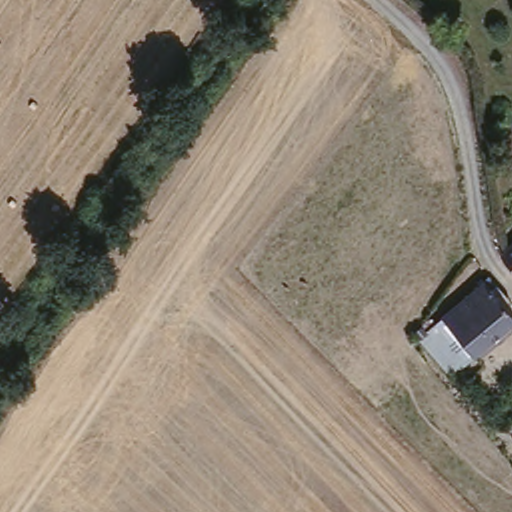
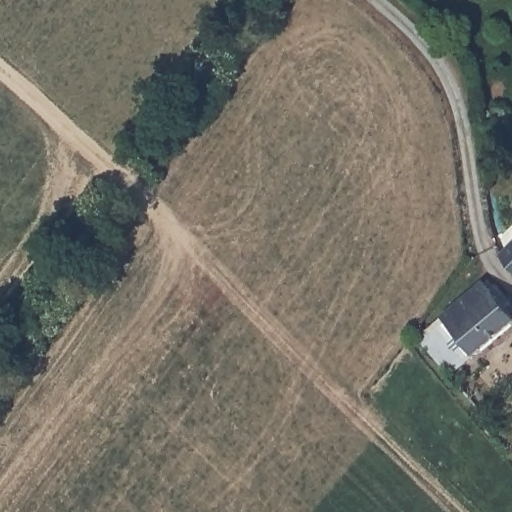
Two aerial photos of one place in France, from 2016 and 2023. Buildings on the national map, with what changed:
unchanged [(512,250),(512,272),(502,261),(512,250)]
unchanged [(440,319),(490,281),(492,286),(512,314),(512,328),(471,359),(451,334),(440,319)]

